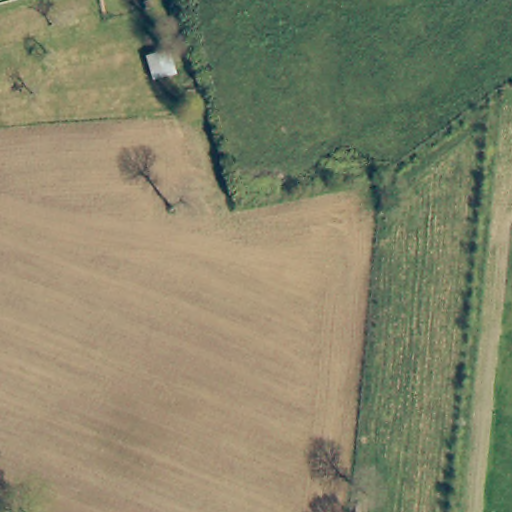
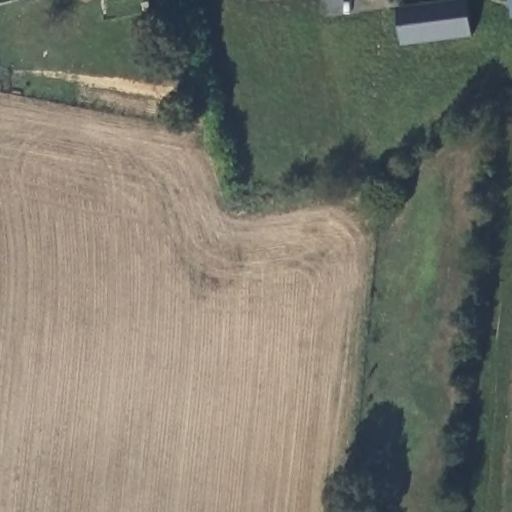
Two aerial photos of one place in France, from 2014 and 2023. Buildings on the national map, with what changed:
unchanged [(146,0),(155,0),(155,4),(148,6),(146,0)]
new [(472,37),(402,45),(397,7),(448,0),(467,0),(472,37)]

